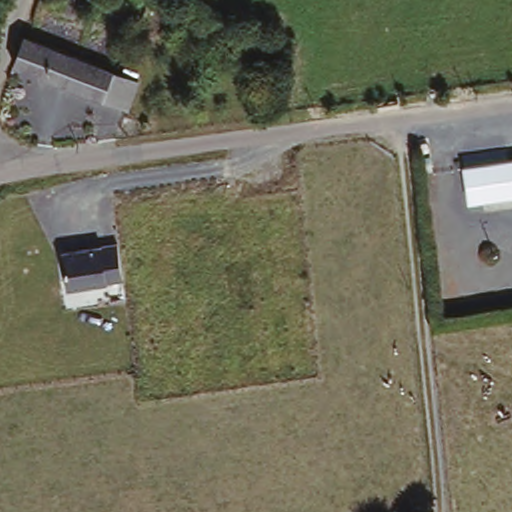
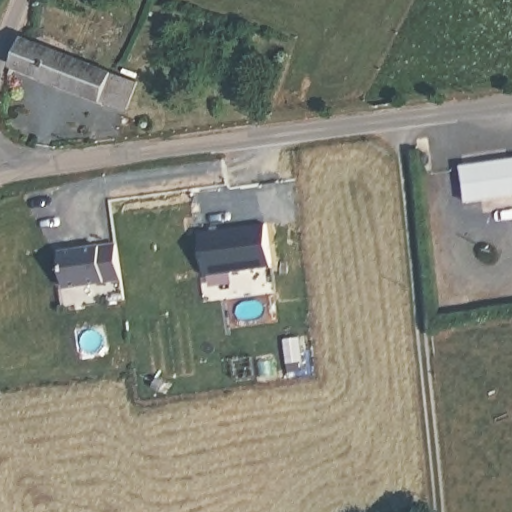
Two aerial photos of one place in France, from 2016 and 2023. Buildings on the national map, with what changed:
unchanged [(24,36),(108,70),(95,99),(56,85),(26,72),(21,82),(10,75),(24,36)]
unchanged [(108,70),(114,72),(142,84),(129,111),(95,99),(108,70)]
unchanged [(512,159),(512,197),(464,203),(461,166),(512,159)]
new [(199,232),(267,224),(272,267),(207,275),(199,232)]
unchanged [(115,242),(120,281),(66,288),(60,250),(115,242)]

